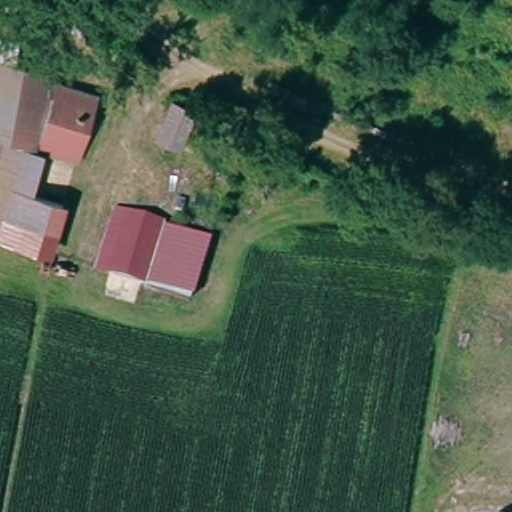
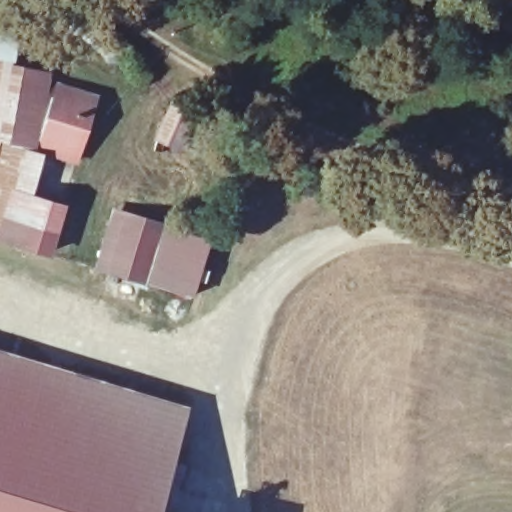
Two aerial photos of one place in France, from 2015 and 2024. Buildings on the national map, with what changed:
unchanged [(8,49),(0,48),(0,21),(11,23),(8,49)]
unchanged [(0,63),(51,73),(35,150),(46,153),(36,194),(68,205),(54,254),(0,241),(0,63)]
unchanged [(81,165),(41,149),(58,85),(101,96),(81,165)]
unchanged [(182,141),(154,136),(166,87),(193,92),(182,141)]
unchanged [(211,239),(195,296),(110,273),(126,213),(211,239)]
new [(156,512),(0,512),(0,350),(188,407),(156,512)]

